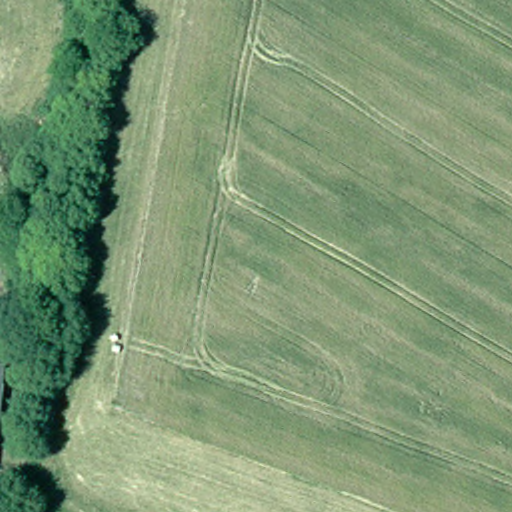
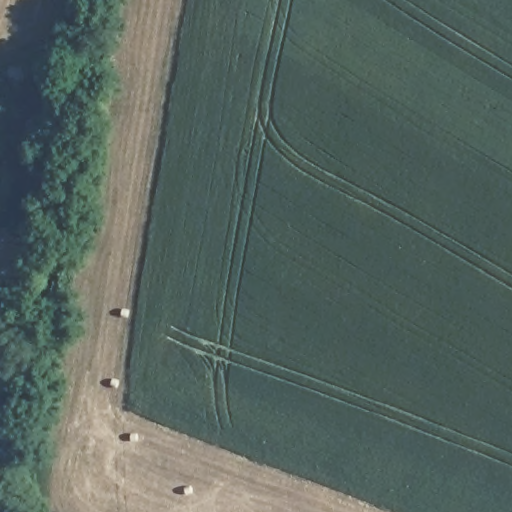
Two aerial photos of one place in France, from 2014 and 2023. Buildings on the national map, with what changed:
unchanged [(0,395),(0,368),(3,368),(0,395)]

